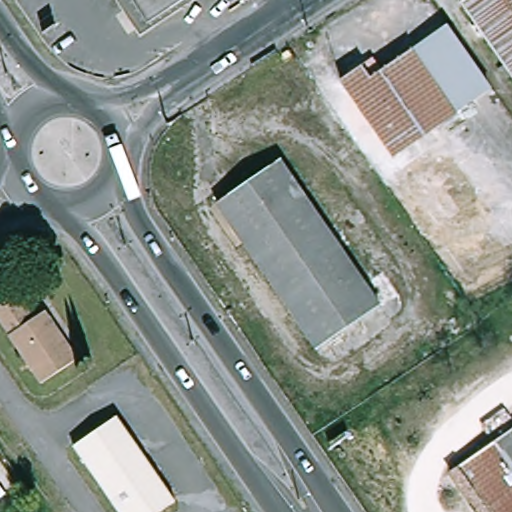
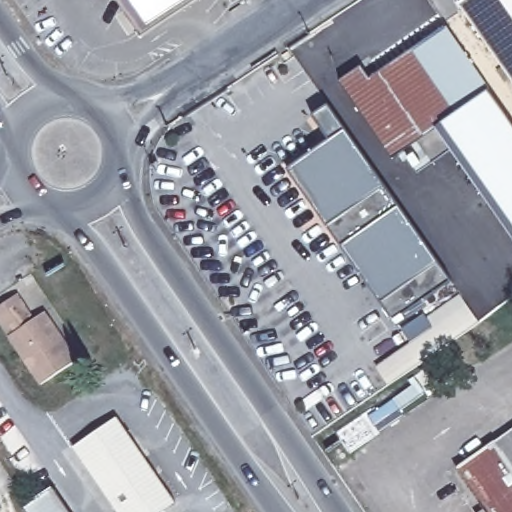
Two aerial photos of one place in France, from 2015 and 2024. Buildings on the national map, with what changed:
unchanged [(134,0),(186,0),(149,24),(134,0)]
unchanged [(512,0),(512,72),(465,3),(469,0),(512,0)]
unchanged [(444,29),(486,89),(453,113),(392,154),(342,79),(362,64),(372,77),(411,50),(444,29)]
new [(452,150),(418,173),(416,170),(407,158),(416,153),(420,160),(428,155),(417,138),(453,113),(486,89),(512,125),(512,237),(452,150)]
new [(452,281),(393,323),(287,169),(331,139),(314,115),(329,105),(452,281)]
demolished [(283,159),(383,305),(375,312),(381,321),(372,327),(366,318),(322,349),(221,203),(283,159)]
new [(428,319),(460,295),(480,323),(388,386),(377,367),(412,343),(402,329),(424,313),(428,319)]
unchanged [(84,363),(48,386),(0,312),(25,296),(32,308),(41,322),(52,314),(84,363)]
unchanged [(165,512),(125,512),(79,444),(120,417),(179,503),(165,512)]
unchanged [(466,464),(512,432),(512,512),(493,512),(462,467),(466,464)]
new [(25,508),(54,488),(70,512),(28,512),(25,508)]

